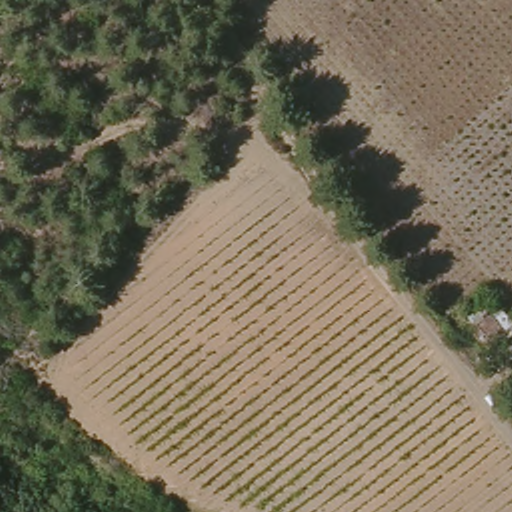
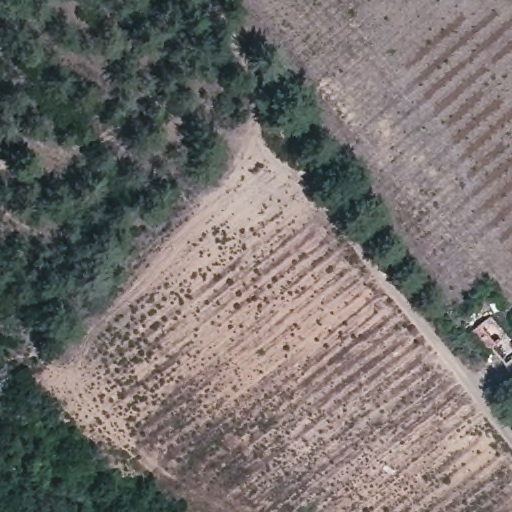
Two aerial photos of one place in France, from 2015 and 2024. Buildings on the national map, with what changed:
unchanged [(507,328),(512,334),(512,356),(507,360),(491,340),(507,328)]

